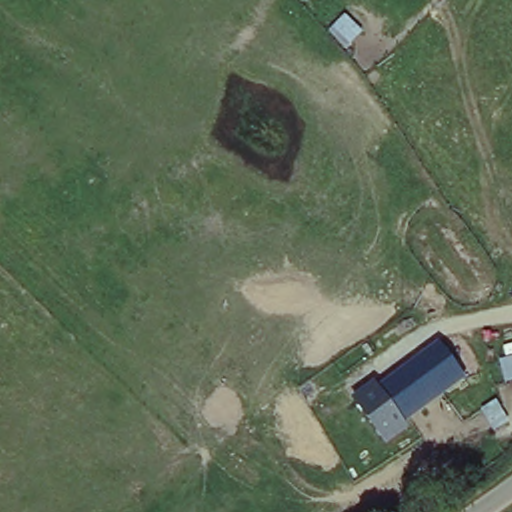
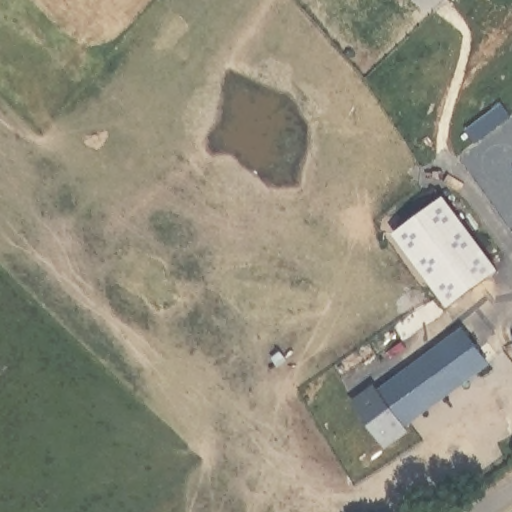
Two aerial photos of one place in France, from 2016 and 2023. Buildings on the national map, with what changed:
new [(444,191),(498,266),(447,305),(393,230),(444,191)]
unchanged [(406,426),(410,432),(386,448),(353,400),(376,383),(382,388),(465,327),(495,363),(406,426)]
unchanged [(506,390),(500,361),(512,359),(512,388),(506,390)]

